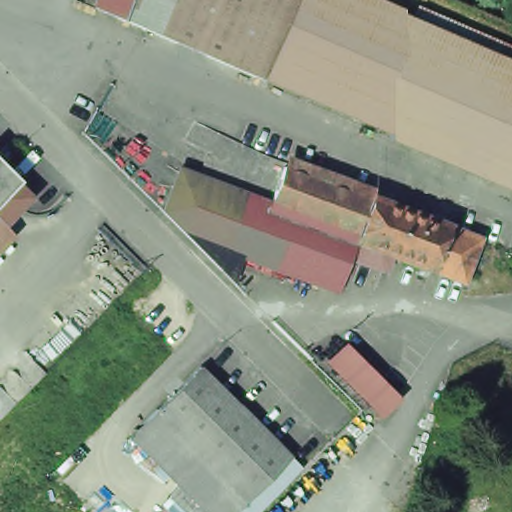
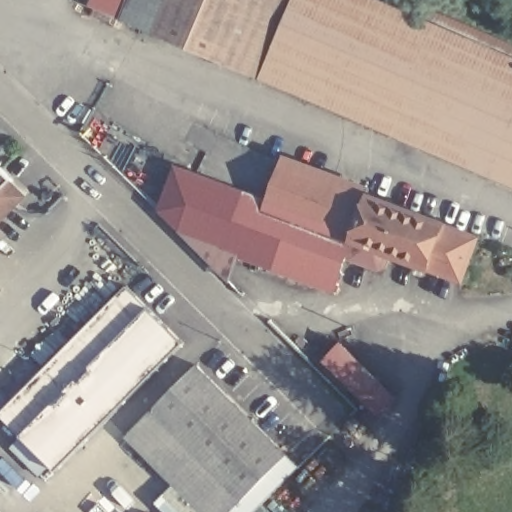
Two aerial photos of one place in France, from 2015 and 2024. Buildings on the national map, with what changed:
unchanged [(85,0),(283,0),(282,3),(252,72),(252,71),(245,69),(182,42),(135,22),(115,14),(85,1),(85,0)]
unchanged [(507,121),(487,165),(479,169),(373,124),(252,72),(282,3),(283,0),(389,0),(512,53),(512,109),(507,121)]
unchanged [(508,158),(512,145),(512,181),(502,177),(508,158)]
unchanged [(392,261),(379,277),(345,263),(330,293),(157,225),(165,160),(257,199),(277,152),(475,227),(485,231),(457,289),(455,288),(392,261)]
unchanged [(25,196),(0,221),(0,165),(13,178),(11,181),(25,196)]
unchanged [(0,225),(7,233),(0,240),(0,225)]
new [(183,344),(56,472),(50,465),(38,476),(17,454),(27,444),(0,416),(0,414),(127,287),(183,344)]
unchanged [(400,390),(372,422),(313,359),(338,333),(400,390)]
unchanged [(251,512),(197,512),(122,432),(198,359),(300,463),(251,512)]

